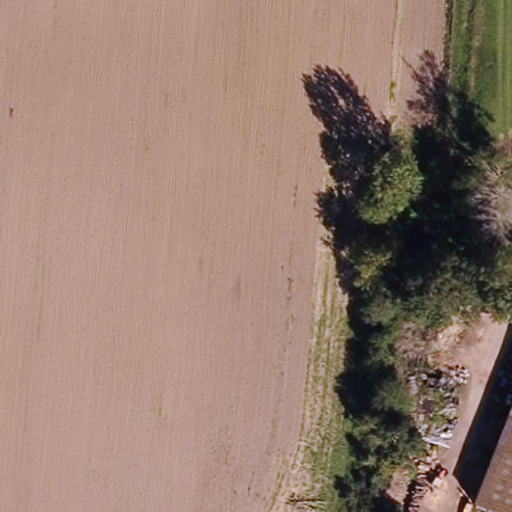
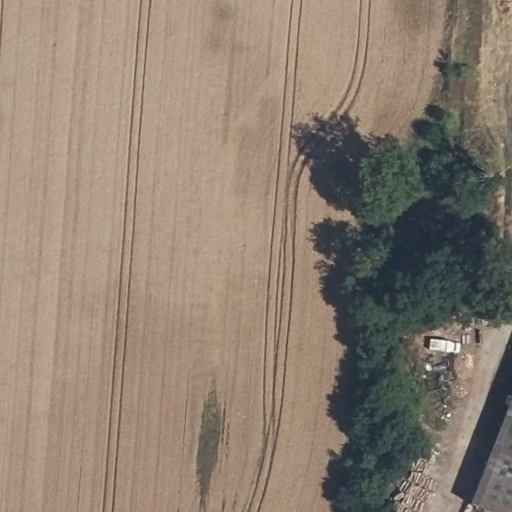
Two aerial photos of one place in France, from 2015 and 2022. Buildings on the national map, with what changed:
unchanged [(496,512),(481,507),(512,423),(512,512),(496,512)]

